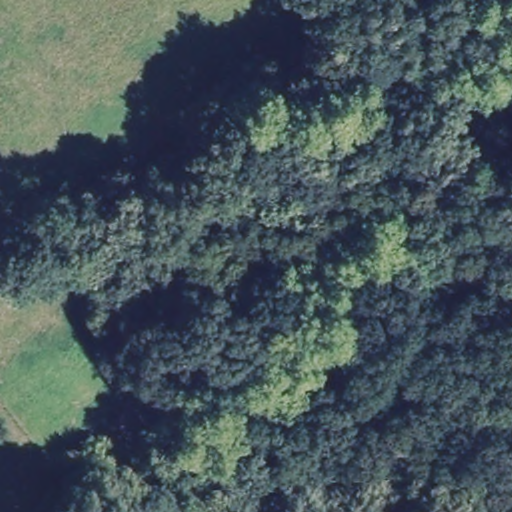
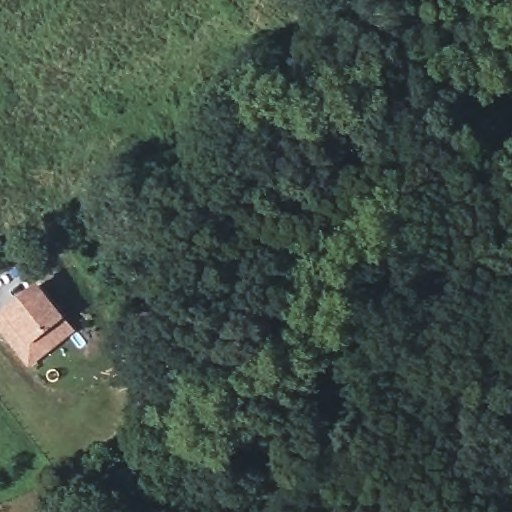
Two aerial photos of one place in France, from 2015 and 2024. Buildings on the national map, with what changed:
new [(30,367),(0,331),(0,313),(40,283),(76,330),(30,367)]
unchanged [(168,351),(131,371),(106,310),(142,296),(168,351)]

